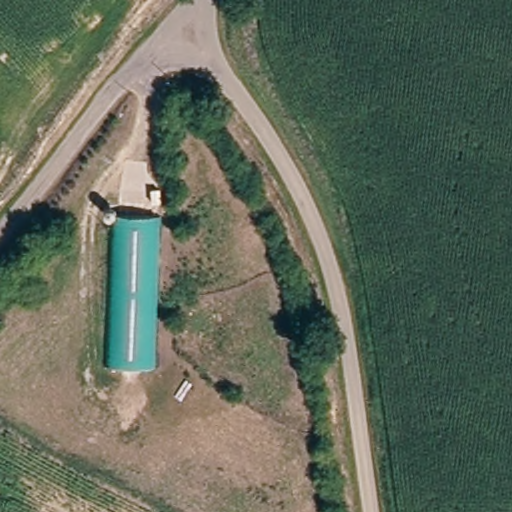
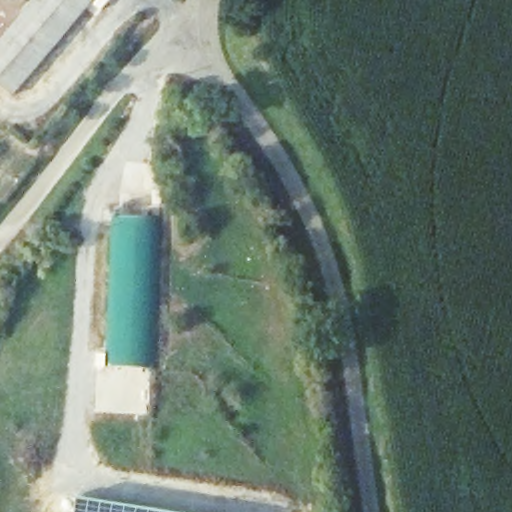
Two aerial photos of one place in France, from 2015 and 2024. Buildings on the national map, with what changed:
new [(91,4),(13,97),(0,86),(0,41),(34,0),(111,0),(100,11),(91,4)]
unchanged [(104,365),(110,208),(119,210),(119,215),(152,218),(152,365),(104,365)]
new [(74,495),(175,512),(72,512),(74,495)]

